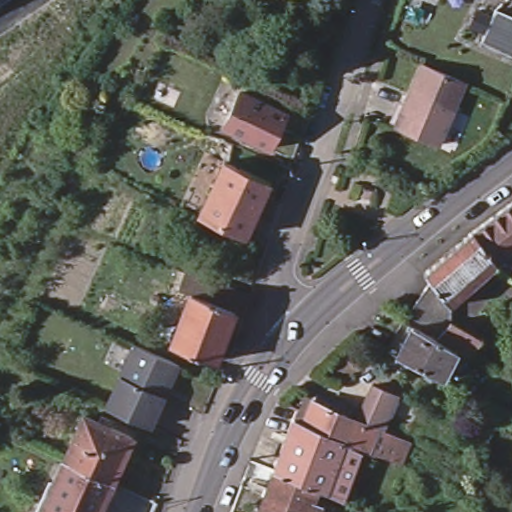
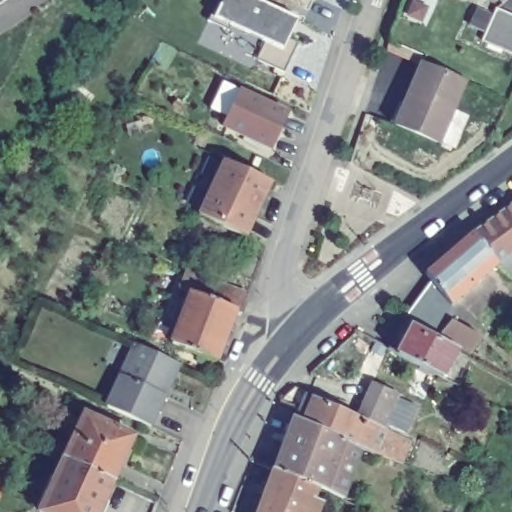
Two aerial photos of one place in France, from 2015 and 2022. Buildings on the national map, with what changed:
new [(290,35),(297,43),(283,71),(256,59),(261,40),(230,25),(228,30),(206,19),(215,0),(258,0),(297,19),(290,35)]
unchanged [(497,6),(512,13),(512,51),(483,39),(497,6)]
unchanged [(425,67),(468,86),(441,148),(398,130),(425,67)]
unchanged [(287,115),(270,151),(224,129),(241,93),(287,115)]
unchanged [(197,221),(206,201),(204,200),(207,193),(213,196),(236,148),(281,171),(256,225),(246,244),(197,221)]
unchanged [(498,268),(473,235),(512,206),(512,257),(498,268)]
unchanged [(498,268),(452,308),(433,285),(426,276),(472,236),(473,235),(498,268)]
unchanged [(191,307),(185,304),(182,309),(176,307),(178,301),(185,284),(217,297),(247,308),(241,326),(235,324),(216,374),(172,357),(191,307)]
unchanged [(470,356),(439,339),(405,321),(433,285),(452,308),(445,316),(452,324),(483,340),(470,356)]
unchanged [(441,380),(431,375),(388,352),(405,323),(457,351),(456,353),(441,380)]
unchanged [(173,380),(163,388),(160,396),(165,398),(150,430),(106,409),(135,346),(179,366),(173,380)]
unchanged [(356,441),(347,438),(303,418),(308,409),(301,406),(306,393),(314,397),(358,417),(363,406),(375,383),(399,394),(388,418),(385,416),(380,426),(412,440),(401,462),(395,459),(379,452),(356,441)]
unchanged [(295,415),(298,416),(303,418),(347,438),(326,489),(318,485),(275,466),(295,415)]
unchanged [(65,461),(87,416),(135,438),(114,484),(65,461)]
unchanged [(101,512),(42,512),(65,461),(114,484),(101,512)]
unchanged [(307,512),(258,512),(275,466),(318,485),(307,512)]

